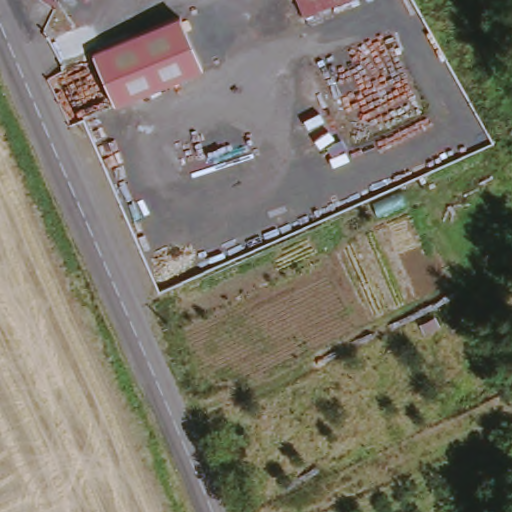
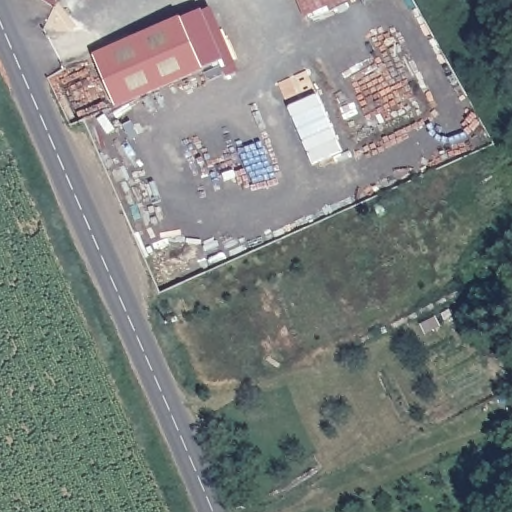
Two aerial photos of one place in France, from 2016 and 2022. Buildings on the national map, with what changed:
unchanged [(100,8),(96,0),(116,0),(100,8)]
unchanged [(317,15),(310,0),(350,0),(317,15)]
unchanged [(121,108),(99,57),(189,18),(210,70),(121,108)]

